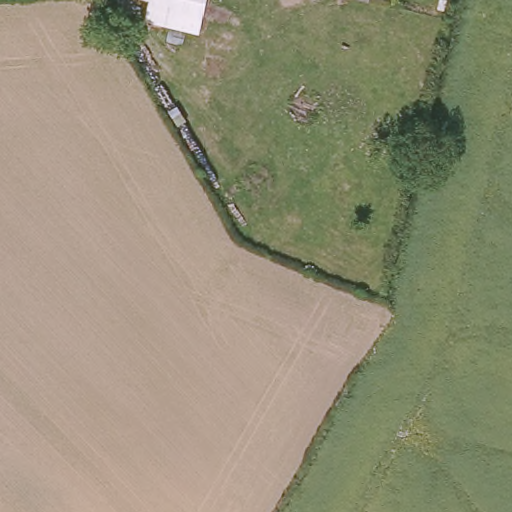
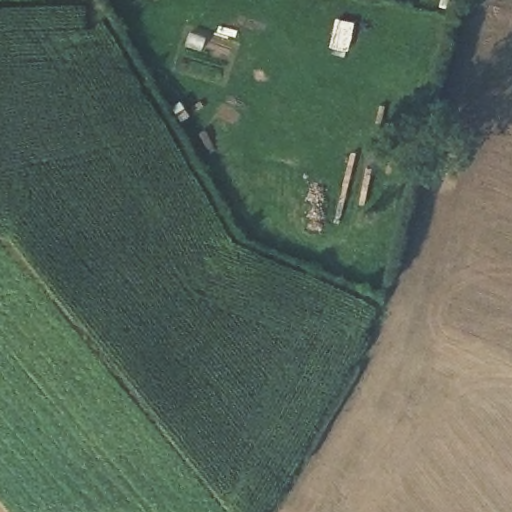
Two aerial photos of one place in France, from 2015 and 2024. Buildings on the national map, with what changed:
demolished [(149,0),(210,0),(202,34),(145,17),(149,0)]

